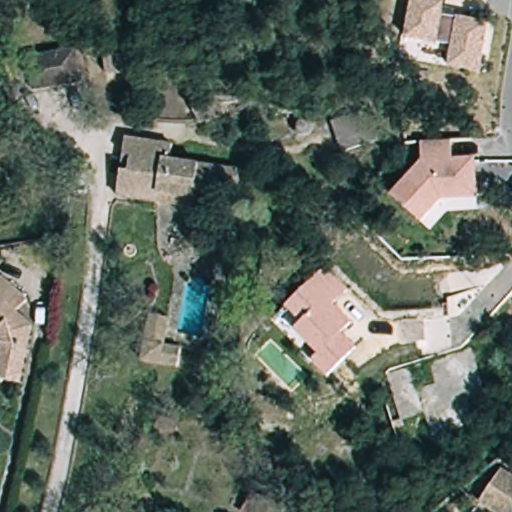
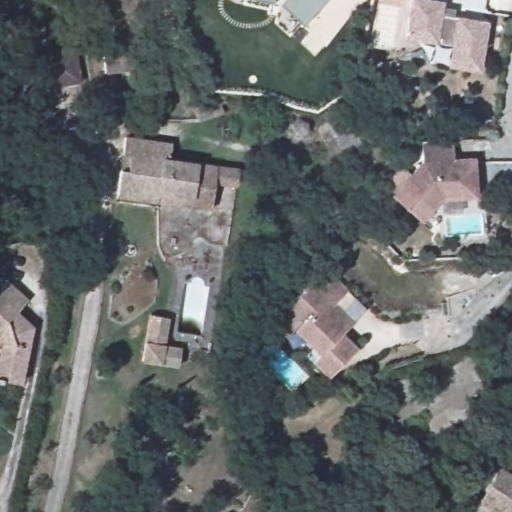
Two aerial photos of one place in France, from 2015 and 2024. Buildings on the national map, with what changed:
new [(301,22),(280,2),(272,0),(324,0),(301,22)]
unchanged [(490,22),(483,72),(450,68),(452,46),(405,38),(411,0),(439,0),(446,1),(444,15),(490,22)]
unchanged [(33,52),(73,47),(78,79),(38,84),(33,52)]
unchanged [(191,106),(221,94),(226,111),(198,122),(191,106)]
unchanged [(326,119),(361,107),(371,131),(373,137),(336,149),(330,129),(326,119)]
unchanged [(477,156),(478,197),(442,201),(422,221),(393,193),(422,160),(424,139),(452,138),(455,157),(477,156)]
unchanged [(240,198),(223,196),(220,214),(198,211),(198,203),(165,199),(163,206),(116,200),(123,151),(171,157),(170,171),(225,180),(241,182),(240,198)]
unchanged [(0,247),(0,229),(6,228),(8,246),(0,247)]
unchanged [(335,305),(351,322),(341,332),(358,347),(331,378),(314,361),(320,352),(298,328),(304,320),(287,305),(324,270),(347,289),(335,305)]
unchanged [(3,344),(0,341),(0,291),(8,282),(32,305),(20,318),(31,328),(23,381),(0,378),(0,357),(1,357),(3,344)]
unchanged [(176,324),(173,351),(190,354),(188,373),(152,368),(158,321),(176,324)]
unchanged [(512,472),(512,512),(510,512),(483,494),(504,466),(512,472)]

